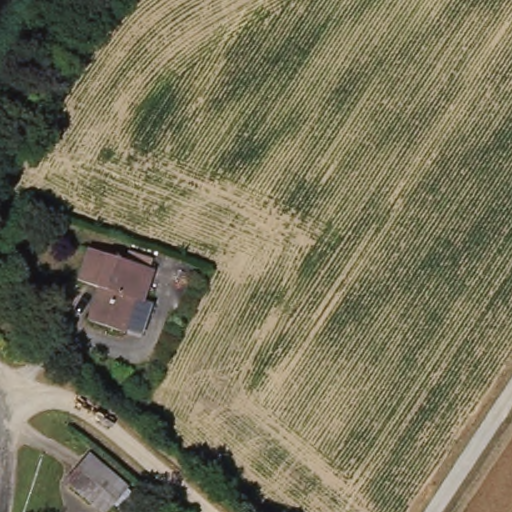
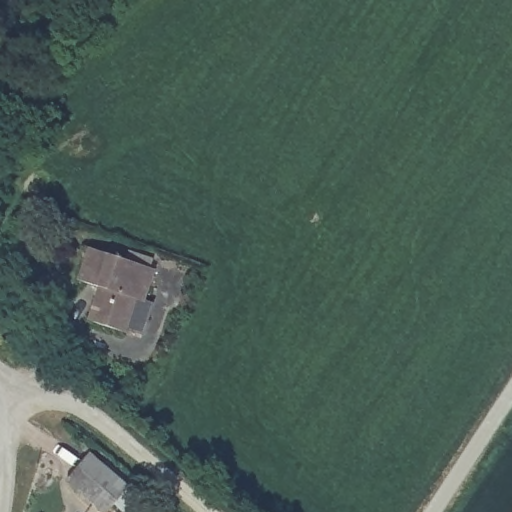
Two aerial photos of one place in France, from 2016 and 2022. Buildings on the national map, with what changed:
unchanged [(79,281),(91,249),(158,272),(146,304),(140,302),(130,336),(89,322),(99,288),(79,281)]
unchanged [(124,488),(105,512),(102,512),(64,480),(86,455),(124,488)]

